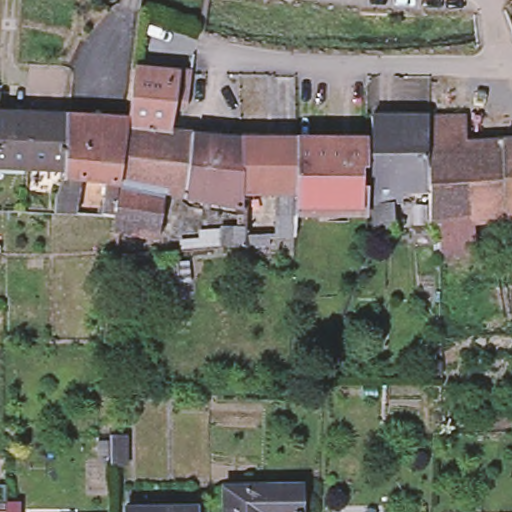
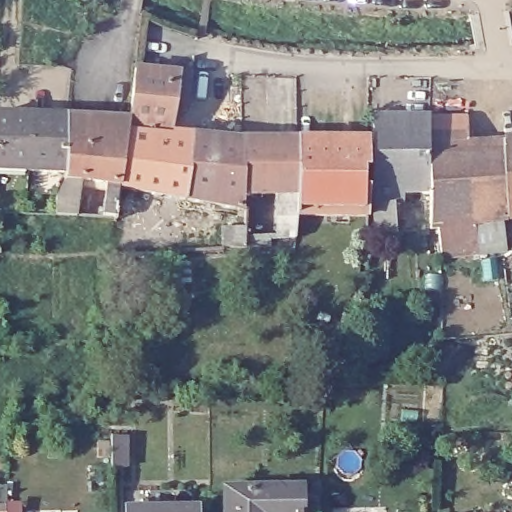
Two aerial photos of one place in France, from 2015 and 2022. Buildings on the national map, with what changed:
unchanged [(130,59),(174,64),(187,66),(182,101),(168,107),(165,124),(165,125),(122,123),(123,112),(125,112),(130,59)]
unchanged [(22,161),(0,160),(0,104),(24,106),(22,161)]
unchanged [(60,164),(22,161),(24,106),(63,108),(60,164)]
unchanged [(84,109),(73,172),(76,172),(71,207),(46,207),(60,164),(63,108),(84,109)]
unchanged [(101,176),(76,172),(73,172),(84,109),(123,112),(122,123),(165,125),(165,124),(187,126),(182,191),(162,187),(154,231),(107,222),(109,210),(108,210),(108,207),(98,206),(101,176)]
unchanged [(502,211),(470,215),(473,244),(437,248),(433,220),(425,221),(391,225),(372,227),(370,196),(368,109),(425,109),(462,109),(463,135),(497,133),(502,211)]
unchanged [(217,237),(220,197),(182,191),(187,126),(237,131),(238,186),(240,186),(240,199),(242,199),(242,231),(242,239),(217,237)]
unchanged [(363,130),(363,158),(356,159),(357,179),(363,179),(363,191),(364,207),(291,207),(292,131),(363,130)]
unchanged [(272,230),(272,208),(272,186),(240,186),(238,186),(237,131),(292,131),(291,207),(291,208),(291,229),(272,230)]
unchanged [(512,132),(512,209),(502,211),(497,133),(512,132)]
unchanged [(175,262),(192,262),(192,283),(179,285),(173,287),(134,288),(132,266),(175,262)]
unchanged [(97,441),(111,437),(111,436),(129,436),(128,465),(113,466),(112,453),(97,456),(97,441)]
unchanged [(222,486),(296,486),(296,512),(222,512),(222,486)]
unchanged [(121,507),(191,506),(191,512),(121,512),(121,507)]

